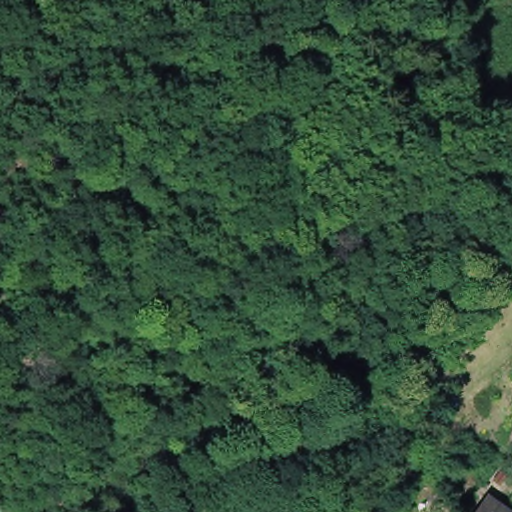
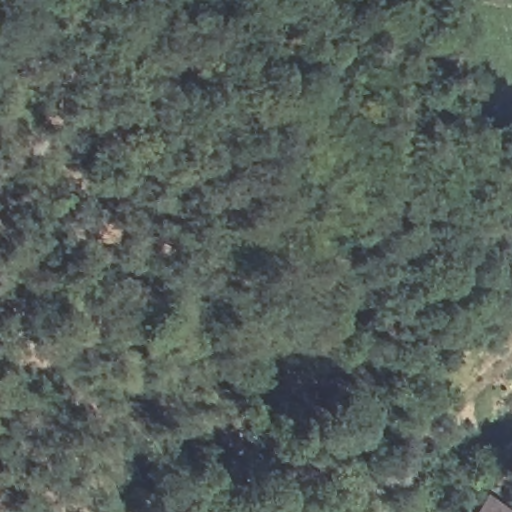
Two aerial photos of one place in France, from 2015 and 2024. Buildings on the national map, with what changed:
unchanged [(272,460),(280,465),(274,475),(265,469),(272,460)]
unchanged [(512,505),(512,512),(484,512),(497,495),(512,505)]

